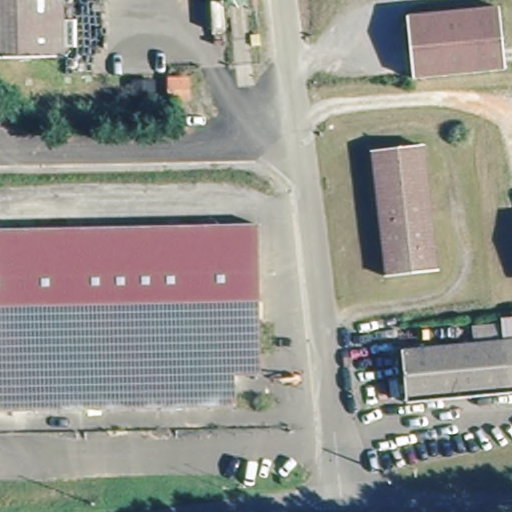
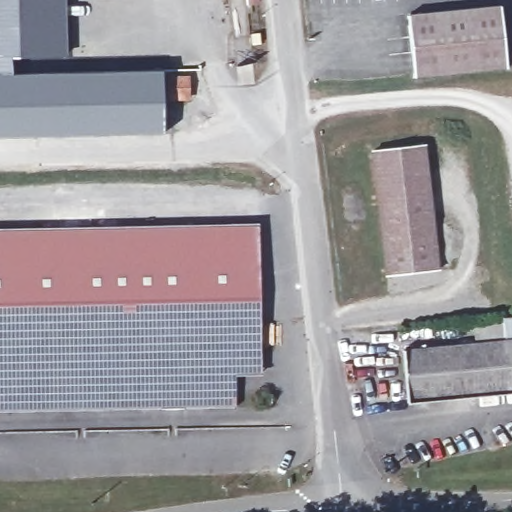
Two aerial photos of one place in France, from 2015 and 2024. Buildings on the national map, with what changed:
unchanged [(0,53),(0,0),(66,0),(68,50),(0,53)]
unchanged [(239,5),(235,6),(230,4),(227,0),(245,0),(242,3),(239,5)]
demolished [(241,21),(240,1),(251,1),(252,21),(241,21)]
unchanged [(409,16),(501,10),(507,72),(414,78),(409,16)]
new [(9,53),(10,74),(161,70),(163,132),(0,139),(0,53),(9,53)]
unchanged [(202,93),(204,118),(177,118),(175,93),(202,93)]
unchanged [(386,278),(373,151),(427,145),(440,271),(386,278)]
unchanged [(236,374),(237,410),(0,415),(0,230),(252,224),(262,373),(236,374)]
unchanged [(408,352),(477,346),(476,327),(486,326),(504,325),(504,344),(512,344),(512,395),(409,404),(408,352)]

